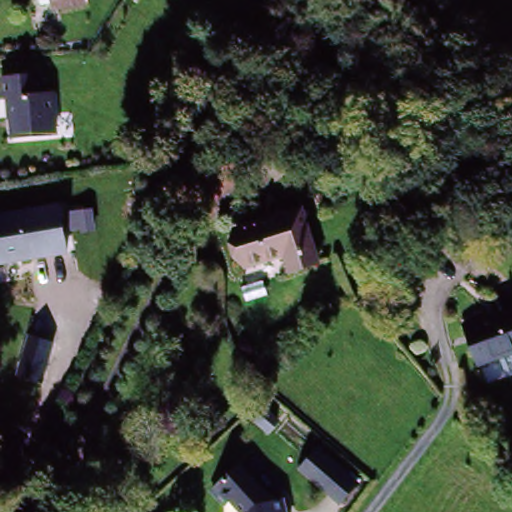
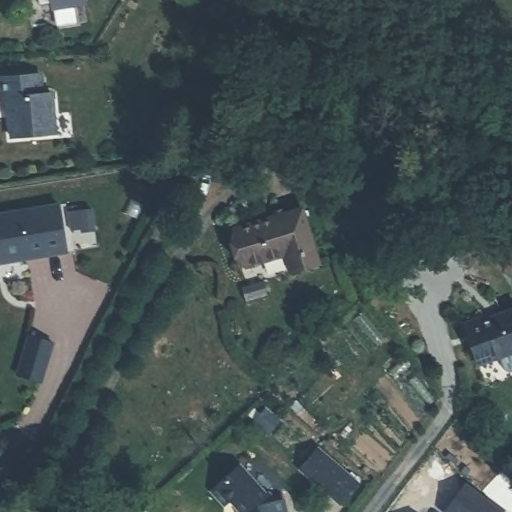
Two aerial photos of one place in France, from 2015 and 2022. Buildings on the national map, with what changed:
unchanged [(85,0),(87,9),(55,14),(53,0),(85,0)]
unchanged [(8,96),(1,95),(1,74),(40,71),(42,92),(52,91),(55,131),(11,137),(8,96)]
unchanged [(65,250),(0,261),(0,213),(56,202),(65,250)]
unchanged [(230,232),(295,209),(317,264),(290,274),(282,254),(243,268),(230,232)]
unchanged [(479,318),(480,320),(512,302),(512,367),(508,367),(500,355),(482,368),(470,349),(470,347),(458,329),(479,318)]
unchanged [(348,506),(319,482),(307,472),(324,452),(335,461),(365,485),(348,506)]
unchanged [(278,504),(289,503),(291,512),(246,512),(238,502),(230,508),(218,494),(247,468),(278,504)]
new [(503,512),(444,512),(443,512),(466,483),(503,512)]

